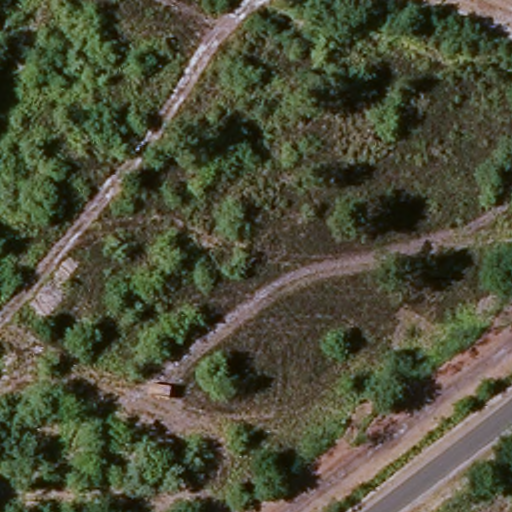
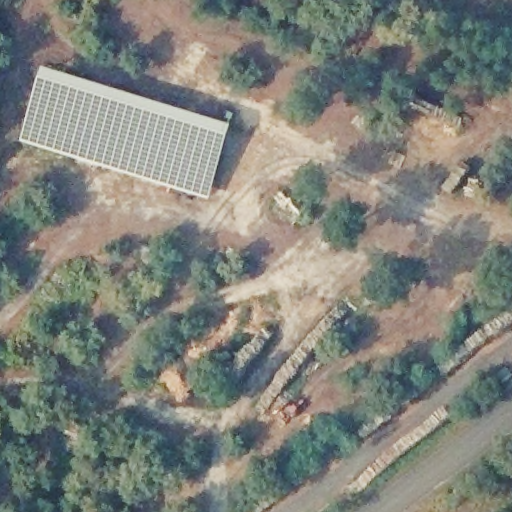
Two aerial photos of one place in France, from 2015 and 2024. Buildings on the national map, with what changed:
new [(30,116),(34,116),(44,70),(51,71),(49,76),(55,79),(57,72),(96,83),(232,125),(209,200),(20,140),(30,116)]

